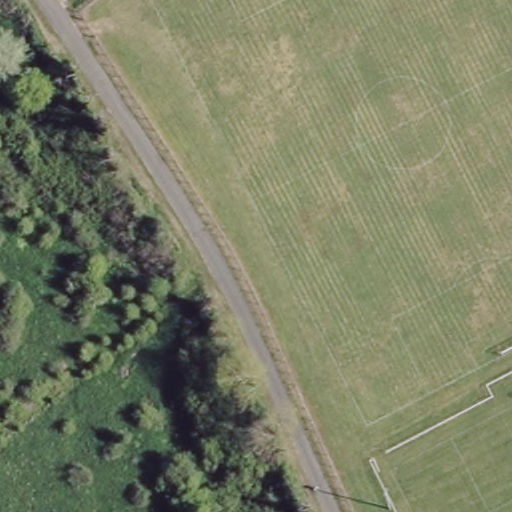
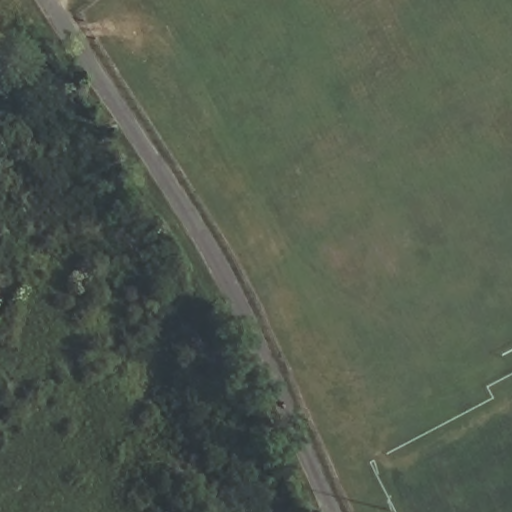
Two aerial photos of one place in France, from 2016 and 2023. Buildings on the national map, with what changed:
[]

